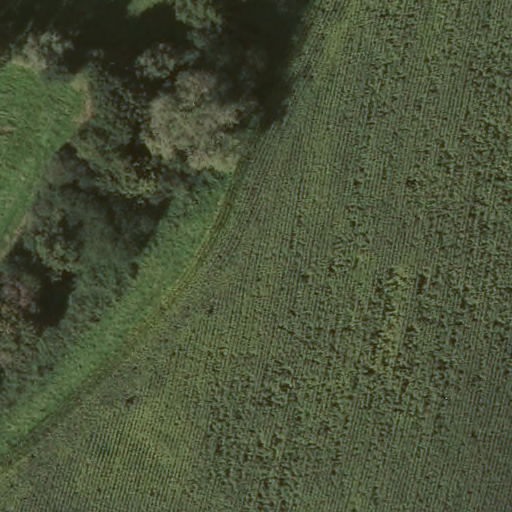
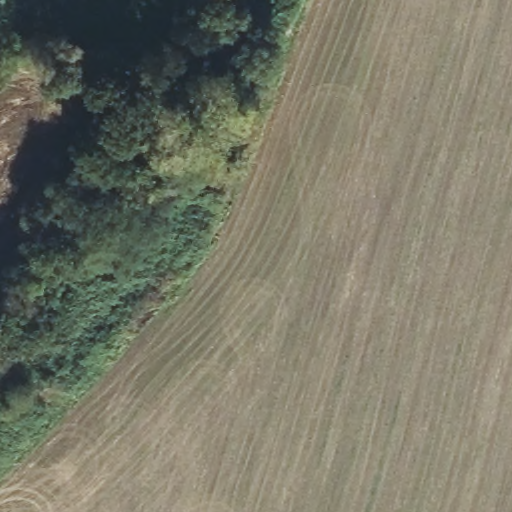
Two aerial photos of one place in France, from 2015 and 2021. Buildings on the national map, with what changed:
[]

